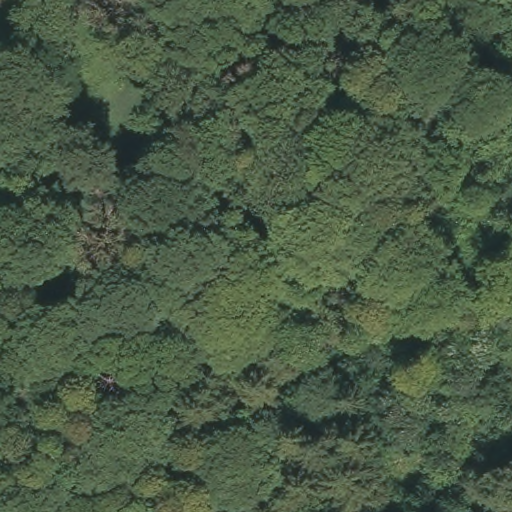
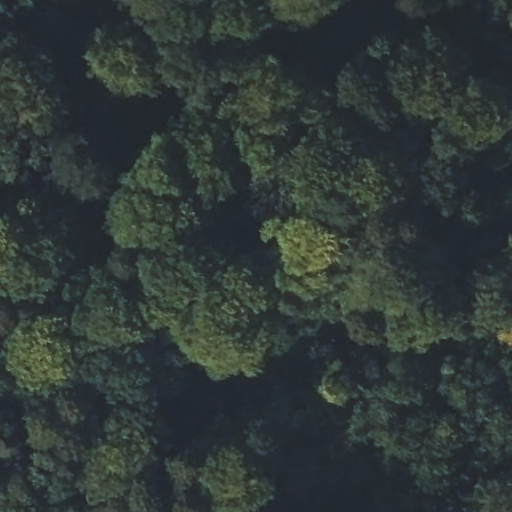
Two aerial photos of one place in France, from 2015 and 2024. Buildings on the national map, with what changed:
[]

